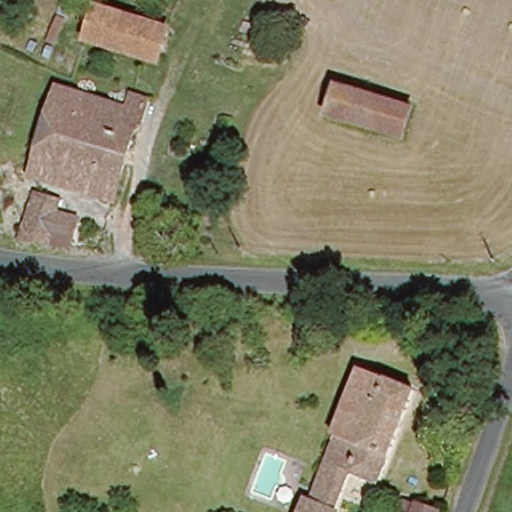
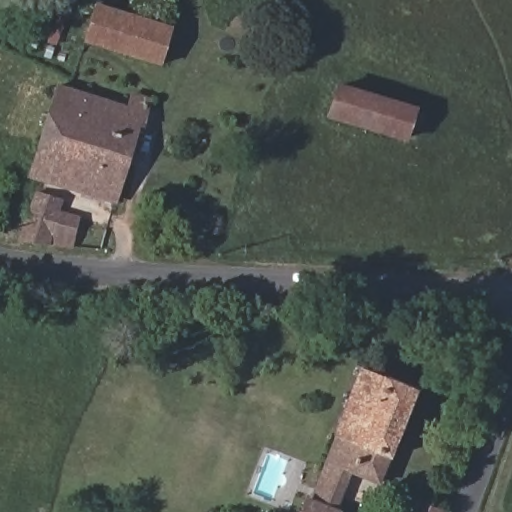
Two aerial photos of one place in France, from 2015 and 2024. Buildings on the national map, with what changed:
unchanged [(89,36),(99,6),(166,28),(156,58),(89,36)]
unchanged [(410,105),(401,132),(327,109),(336,81),(410,105)]
unchanged [(39,177),(67,93),(131,113),(136,100),(149,104),(117,201),(39,177)]
unchanged [(35,197),(56,204),(51,218),(42,246),(20,243),(35,197)]
unchanged [(66,249),(42,246),(51,218),(97,233),(92,251),(66,249)]
unchanged [(330,438),(356,369),(412,393),(379,484),(349,472),(357,449),(330,438)]
unchanged [(330,438),(357,449),(349,472),(340,501),(310,489),(330,438)]
unchanged [(336,512),(302,512),(310,489),(340,501),(336,512)]
unchanged [(419,491),(447,502),(444,512),(411,512),(419,491)]

